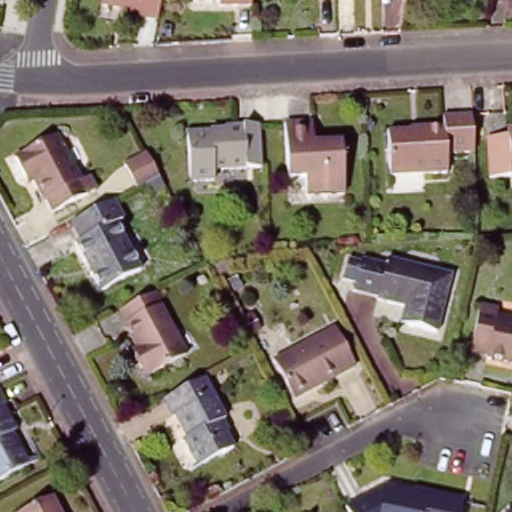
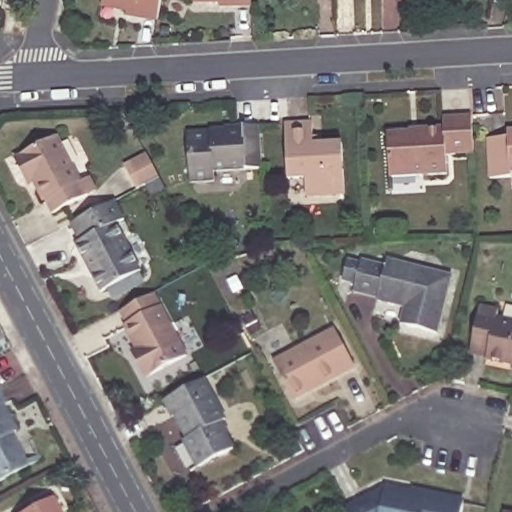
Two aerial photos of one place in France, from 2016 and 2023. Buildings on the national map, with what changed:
unchanged [(124,11),(98,6),(99,0),(159,0),(155,22),(123,15),(124,11)]
unchanged [(218,2),(193,2),(193,0),(250,0),(250,7),(218,7),(218,2)]
unchanged [(448,174),(389,177),(387,135),(446,131),(444,118),(471,117),(473,154),(447,155),(448,174)]
unchanged [(258,125),(261,168),(213,171),(212,182),(188,184),(185,134),(208,132),(223,132),(223,126),(258,125)]
unchanged [(309,127),(311,149),(340,147),(343,198),(304,200),(303,181),(286,182),(283,128),(309,127)]
unchanged [(509,175),(510,182),(488,184),(486,142),(507,141),(507,134),(512,134),(512,175),(509,175)]
unchanged [(95,194),(85,199),(49,217),(42,204),(39,205),(25,180),(21,181),(10,160),(53,139),(78,185),(88,180),(95,194)]
unchanged [(148,182),(139,187),(128,165),(151,152),(162,175),(167,184),(153,191),(148,182)]
unchanged [(115,227),(141,275),(101,296),(75,249),(80,246),(69,226),(113,203),(123,222),(115,227)]
unchanged [(378,303),(379,300),(355,295),(356,290),(346,287),(350,267),(361,270),(361,265),(386,270),(387,261),(448,274),(436,333),(402,326),(406,310),(378,303)]
unchanged [(134,349),(123,328),(126,326),(119,313),(151,296),(185,357),(144,380),(134,359),(131,352),(134,349)]
unchanged [(483,363),(483,360),(467,356),(475,311),(494,315),(492,322),(512,326),(512,369),(483,363)]
unchanged [(353,368),(293,401),(271,363),(331,330),(353,368)]
unchanged [(203,382),(223,422),(217,425),(232,452),(196,471),(182,443),(186,441),(173,416),(171,418),(163,403),(203,382)]
unchanged [(14,433),(10,435),(28,468),(0,484),(0,397),(5,406),(0,410),(14,433)]
unchanged [(384,491),(385,488),(404,492),(403,496),(412,499),(414,491),(463,502),(461,512),(346,512),(346,511),(384,491)]
unchanged [(57,512),(29,512),(50,500),(57,512)]

